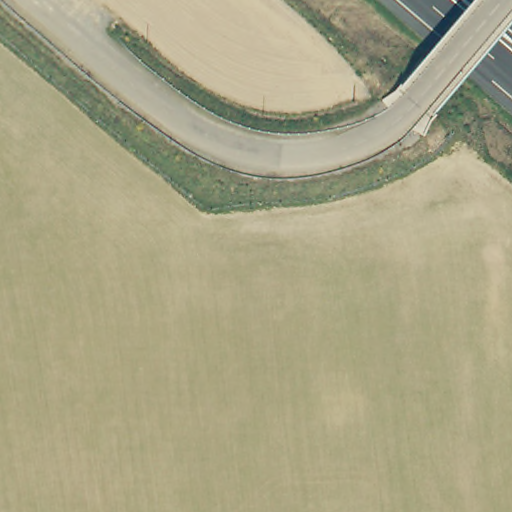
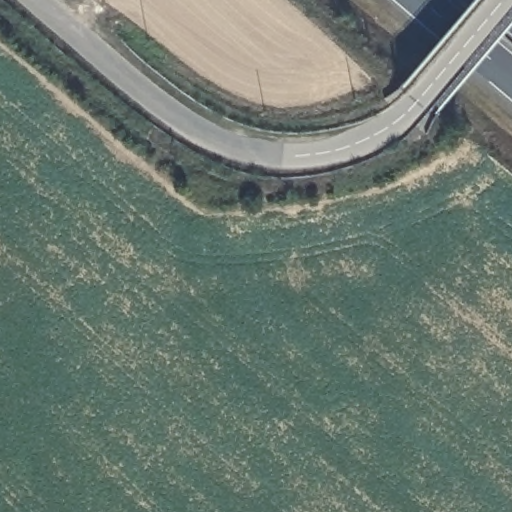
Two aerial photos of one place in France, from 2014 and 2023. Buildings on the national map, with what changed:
[]

